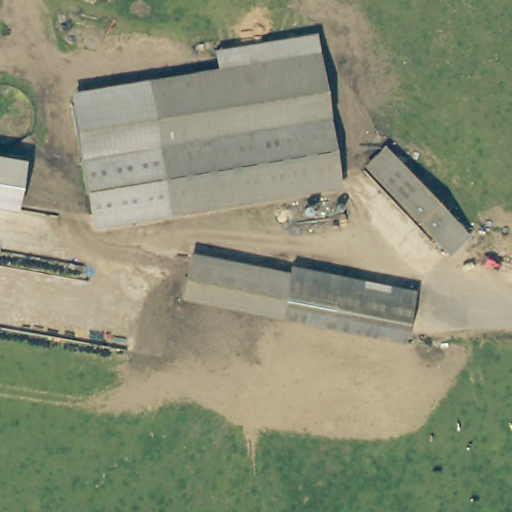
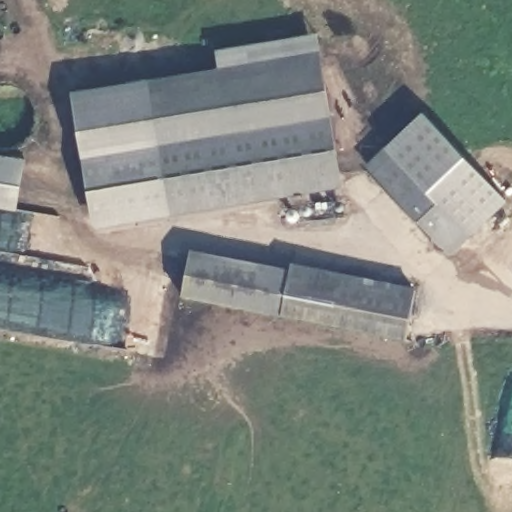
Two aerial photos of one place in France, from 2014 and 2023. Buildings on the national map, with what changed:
unchanged [(221,90),(216,61),(316,45),(321,74),(221,90)]
unchanged [(221,90),(321,74),(338,185),(165,213),(147,102),(221,90)]
unchanged [(91,225),(73,114),(147,102),(165,213),(91,225)]
new [(420,108),(502,194),(463,231),(381,143),(420,108)]
unchanged [(362,161),(381,143),(463,231),(445,248),(362,161)]
unchanged [(0,155),(25,159),(16,210),(0,207),(0,155)]
unchanged [(284,279),(277,317),(177,297),(185,259),(284,279)]
unchanged [(287,265),(411,291),(400,342),(277,317),(284,279),(287,265)]

